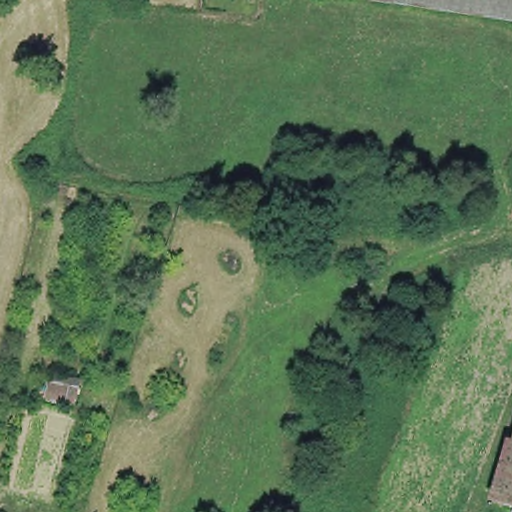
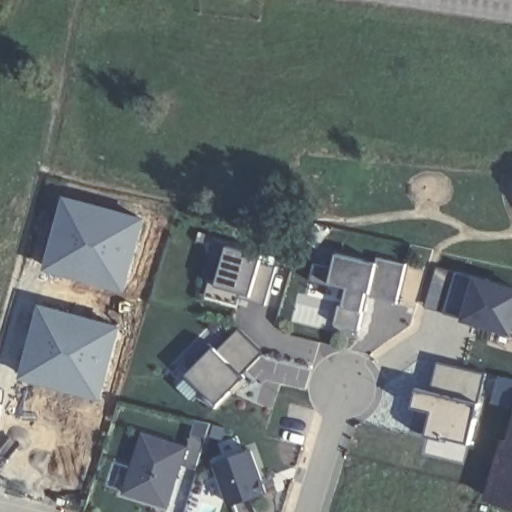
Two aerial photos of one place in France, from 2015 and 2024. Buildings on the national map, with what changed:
unchanged [(377,0),(394,0),(393,2),(377,0)]
unchanged [(393,2),(394,0),(512,0),(512,18),(415,5),(393,2)]
new [(63,192),(145,215),(132,264),(122,291),(42,268),(63,192)]
new [(275,253),(260,305),(243,300),(241,308),(200,297),(215,240),(275,253)]
new [(399,300),(371,294),(362,327),(340,322),(348,287),(329,283),(337,254),(378,262),(380,258),(408,265),(399,300)]
new [(512,291),(512,330),(511,332),(441,315),(452,272),(512,291)]
new [(265,355),(212,408),(185,378),(237,327),(265,355)]
new [(430,393),(435,362),(487,373),(470,448),(422,436),(425,413),(407,409),(411,387),(430,393)]
unchanged [(81,376),(72,403),(40,398),(48,368),(81,376)]
new [(200,470),(183,465),(170,508),(122,495),(142,431),(187,444),(191,432),(210,437),(200,470)]
unchanged [(497,495),(512,445),(512,499),(497,495)]
new [(232,506),(217,461),(253,447),(270,492),(232,506)]

